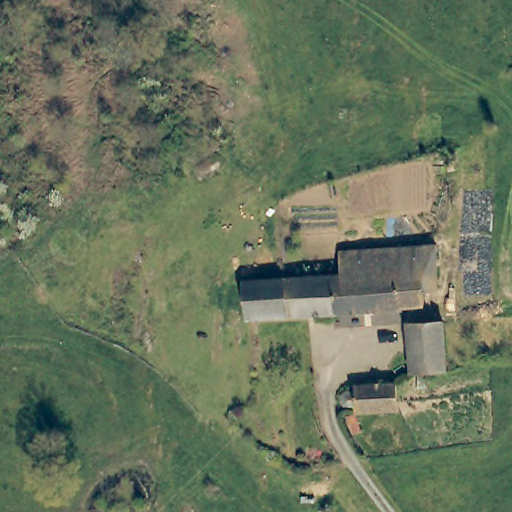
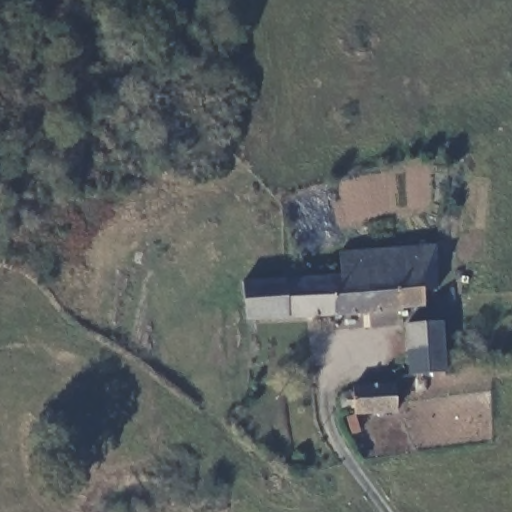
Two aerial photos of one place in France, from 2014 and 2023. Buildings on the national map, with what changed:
unchanged [(278,280),(338,277),(338,250),(434,246),(435,290),(420,291),(420,304),(398,305),(398,309),(369,311),(244,317),(242,282),(278,280)]
unchanged [(447,325),(448,373),(411,375),(411,325),(447,325)]
unchanged [(399,384),(398,412),(359,411),(356,411),(356,407),(348,407),(345,406),(343,403),(343,400),(343,397),(345,393),(347,393),(355,393),(356,383),(399,384)]

